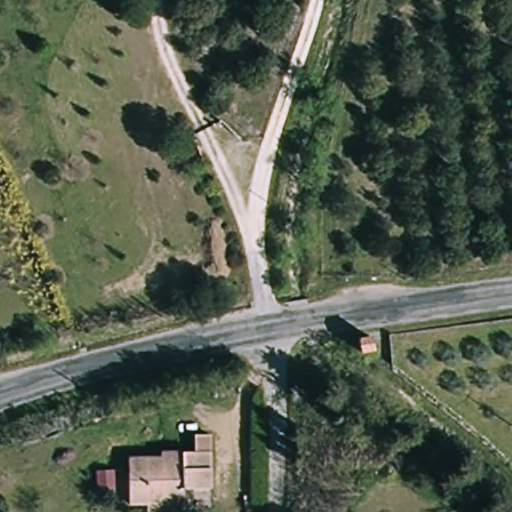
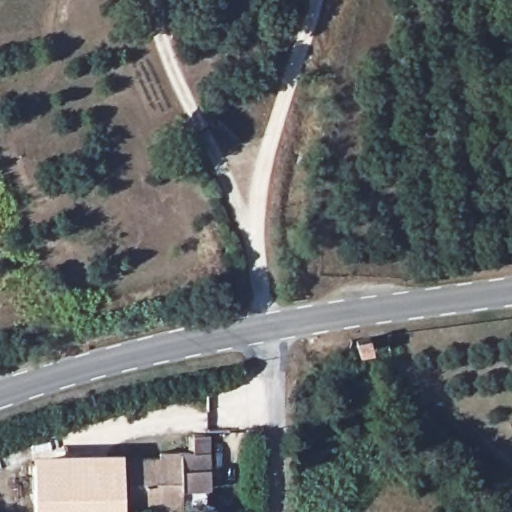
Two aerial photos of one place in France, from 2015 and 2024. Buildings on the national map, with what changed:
new [(124,512),(33,512),(32,453),(123,452),(123,458),(133,459),(133,503),(124,503),(124,512)]
unchanged [(133,503),(133,459),(164,458),(164,452),(208,452),(207,489),(178,489),(177,502),(177,512),(150,512),(150,503),(133,503)]

